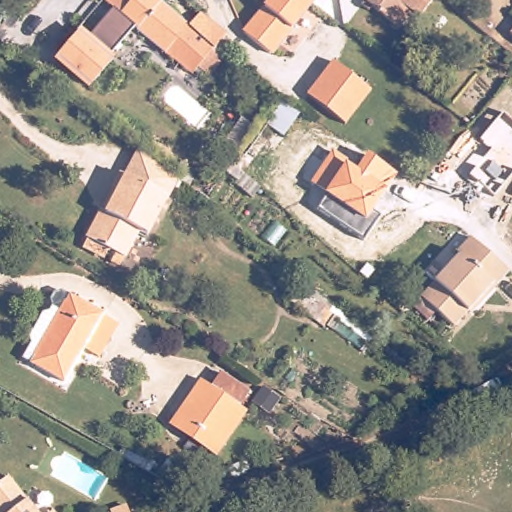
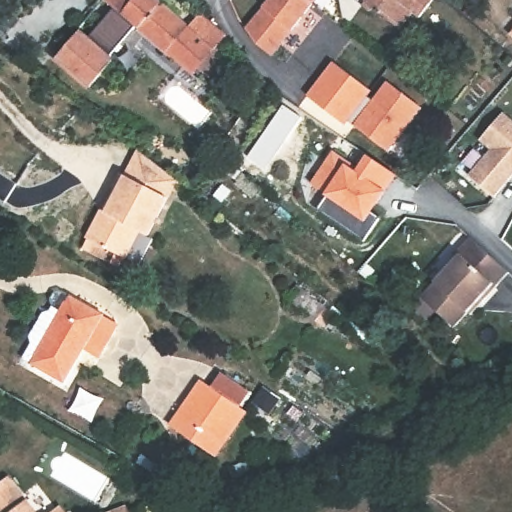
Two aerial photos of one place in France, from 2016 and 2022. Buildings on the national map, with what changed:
unchanged [(203,71),(197,79),(135,26),(126,37),(104,21),(103,20),(113,8),(104,0),(162,0),(160,2),(196,31),(206,19),(226,34),(225,36),(232,46),(208,75),(203,71)]
unchanged [(243,24),(263,0),(309,0),(271,45),(243,24)]
unchanged [(435,0),(425,12),(414,11),(400,29),(372,7),(369,11),(362,5),(366,0),(435,0)]
unchanged [(104,21),(126,37),(110,57),(113,60),(90,87),(58,60),(69,47),(66,44),(77,30),(88,40),(103,20),(104,21)]
unchanged [(376,86),(350,120),(312,91),(338,57),(376,86)]
new [(386,80),(422,107),(387,151),(352,125),(386,80)]
unchanged [(283,135),(266,124),(283,102),(300,114),(283,135)]
unchanged [(504,110),(512,117),(512,176),(494,197),(468,175),(490,150),(479,139),(504,110)]
demolished [(263,125),(276,134),(251,169),(238,160),(256,134),(263,125)]
unchanged [(88,246),(92,239),(107,210),(118,189),(126,174),(130,175),(144,150),(181,180),(153,235),(144,231),(129,257),(125,265),(88,246)]
unchanged [(333,150),(358,166),(366,154),(397,175),(387,190),(372,212),(379,216),(363,240),(318,209),(326,195),(327,193),(311,183),(333,150)]
unchanged [(419,300),(426,292),(465,250),(462,247),(475,232),(512,265),(512,269),(501,281),(498,279),(459,322),(441,305),(434,313),(419,300)]
unchanged [(32,357),(40,343),(39,335),(52,312),(59,310),(62,306),(60,298),(63,292),(71,290),(80,296),(41,362),(32,357)]
unchanged [(314,320),(299,307),(310,295),(325,306),(314,320)]
unchanged [(112,315),(93,348),(74,381),(41,362),(80,296),(112,315)]
unchanged [(226,367),(255,387),(244,402),(250,406),(219,451),(175,420),(207,375),(216,382),(226,367)]
unchanged [(0,504),(0,482),(12,472),(47,512),(6,512),(0,504)]
unchanged [(58,505),(63,512),(50,512),(58,505)]

